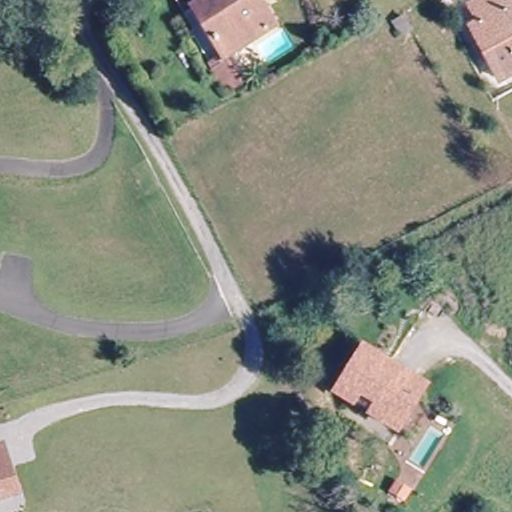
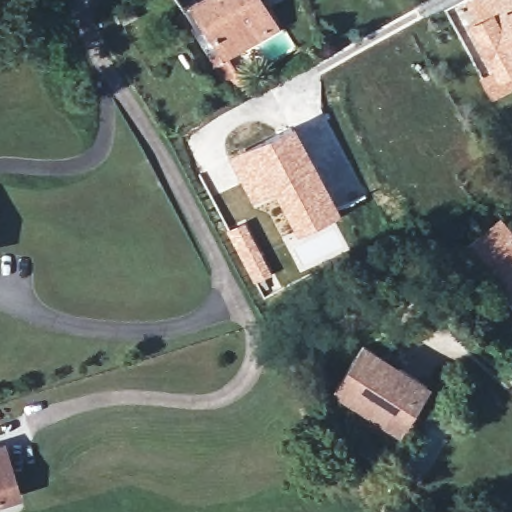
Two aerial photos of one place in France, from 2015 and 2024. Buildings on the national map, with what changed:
unchanged [(277,28),(227,53),(201,0),(262,0),(277,28)]
unchanged [(512,13),(512,79),(501,85),(473,34),(480,30),(468,9),(485,0),(505,0),(512,13)]
unchanged [(225,89),(212,61),(227,53),(242,82),(225,89)]
new [(293,122),(339,210),(296,232),(272,191),(250,202),(227,156),(293,122)]
new [(245,221),(272,275),(253,284),(226,230),(245,221)]
unchanged [(316,377),(345,333),(403,373),(374,417),(353,403),(333,389),(316,377)]
unchanged [(21,493),(0,500),(0,449),(6,447),(21,493)]

